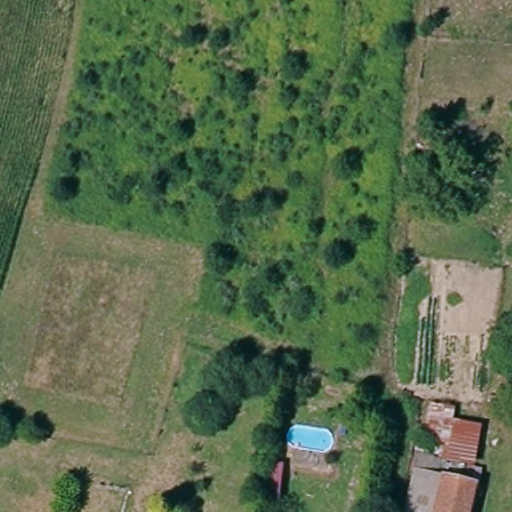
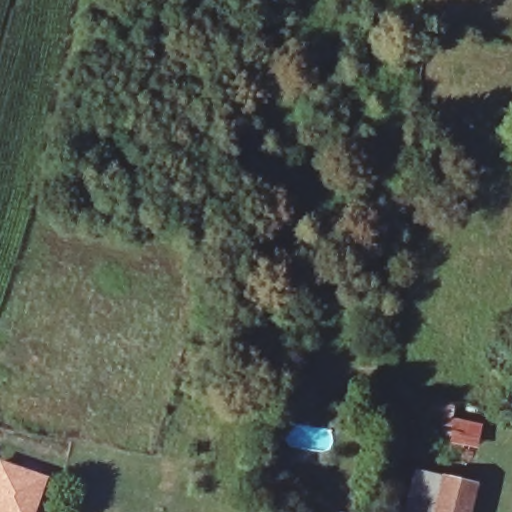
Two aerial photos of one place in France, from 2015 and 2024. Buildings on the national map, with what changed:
unchanged [(425,436),(432,401),(454,405),(453,420),(481,425),(476,462),(418,449),(420,436),(425,436)]
new [(35,512),(0,512),(0,458),(48,475),(35,512)]
unchanged [(470,512),(401,512),(409,473),(475,487),(470,512)]
unchanged [(281,490),(276,512),(260,512),(266,487),(281,490)]

